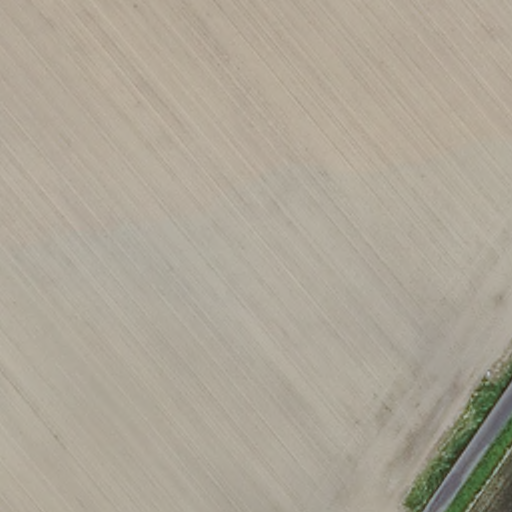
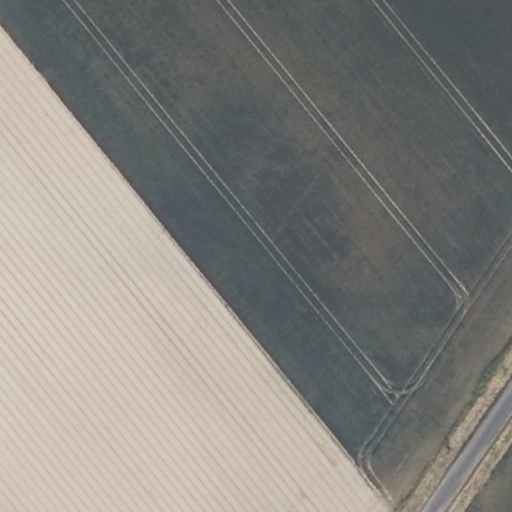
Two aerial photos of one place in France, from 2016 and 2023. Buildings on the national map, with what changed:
[]

